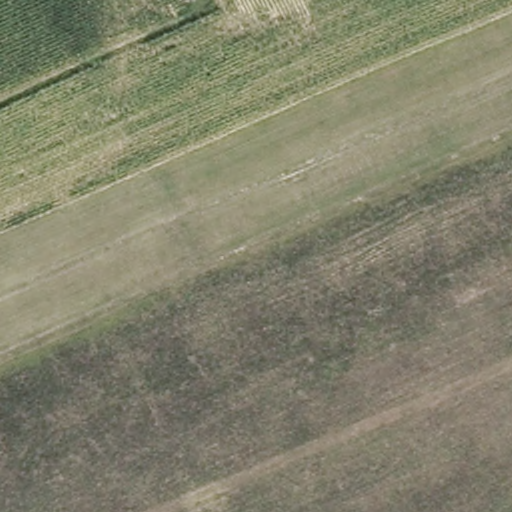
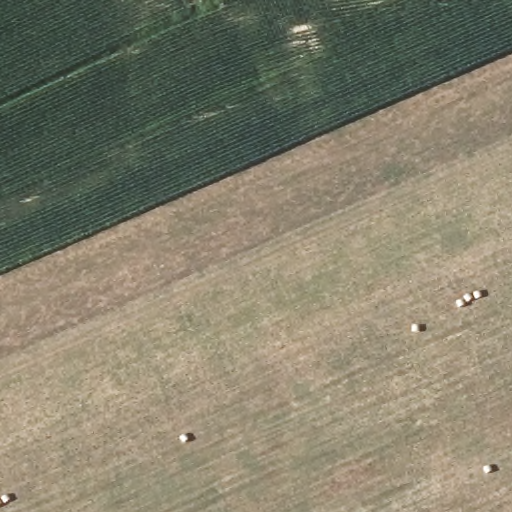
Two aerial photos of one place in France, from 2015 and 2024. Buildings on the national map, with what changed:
[]

